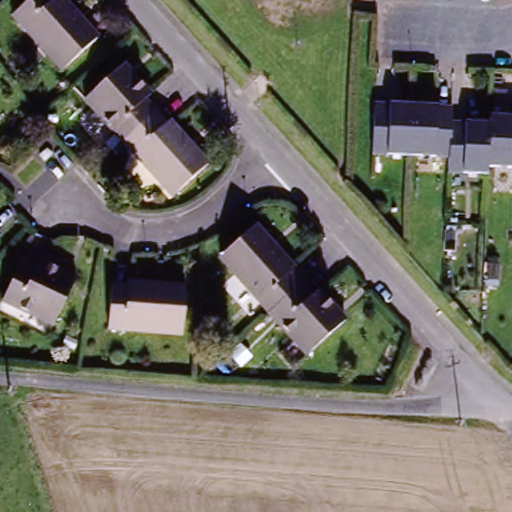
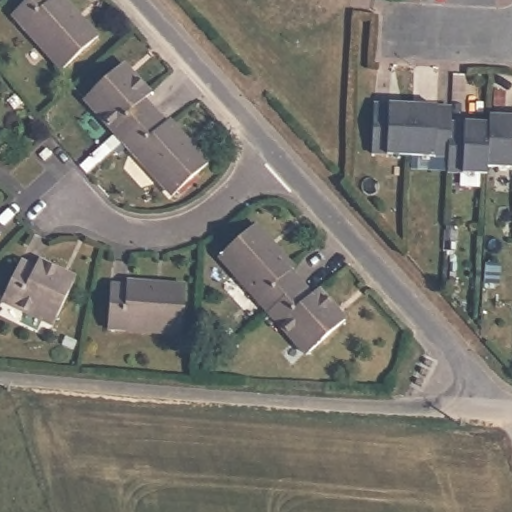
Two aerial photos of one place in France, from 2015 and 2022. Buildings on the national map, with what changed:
unchanged [(63,78),(24,35),(13,21),(37,0),(55,0),(58,4),(61,0),(65,0),(103,42),(63,78)]
unchanged [(180,199),(144,159),(130,143),(121,151),(108,136),(83,109),(125,70),(150,98),(141,106),(153,121),(162,112),(178,128),(180,125),(216,165),(180,199)]
unchanged [(413,153),(371,150),(374,105),(417,108),(413,153)]
unchanged [(457,111),(455,129),(453,156),(413,153),(417,108),(457,111)]
unchanged [(498,126),(512,126),(512,172),(494,171),(498,132),(498,126)]
unchanged [(498,132),(494,171),(494,175),(452,172),(453,156),(455,129),(498,132)]
unchanged [(322,295),(350,325),(308,363),(281,333),(269,320),(276,313),(275,312),(265,300),(226,258),(265,222),(303,265),(298,269),(309,282),(302,289),(314,302),(322,295)]
unchanged [(0,237),(3,239),(0,241),(0,237)]
unchanged [(78,285),(51,333),(18,314),(3,306),(24,267),(39,275),(44,267),(78,285)]
unchanged [(113,285),(131,288),(132,278),(189,286),(183,338),(125,332),(108,329),(113,285)]

